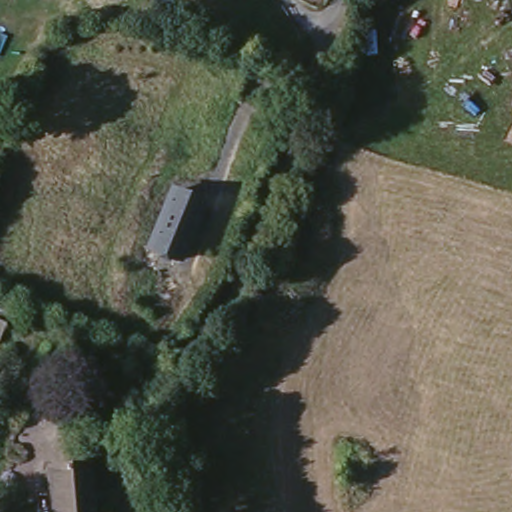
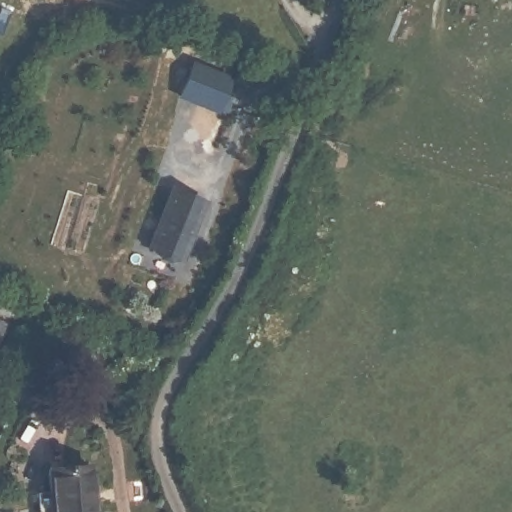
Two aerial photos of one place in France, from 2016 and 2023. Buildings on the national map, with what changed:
new [(191,62),(227,72),(218,104),(181,94),(191,62)]
unchanged [(173,184),(203,197),(176,263),(147,248),(173,184)]
unchanged [(7,323),(0,336),(0,320),(7,323)]
unchanged [(99,512),(43,512),(43,499),(56,499),(56,476),(98,476),(99,512)]

